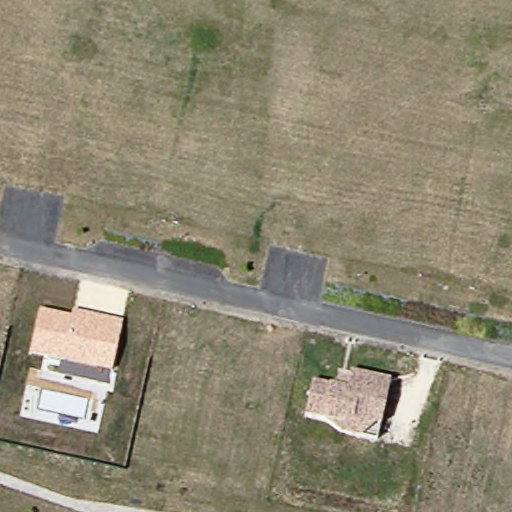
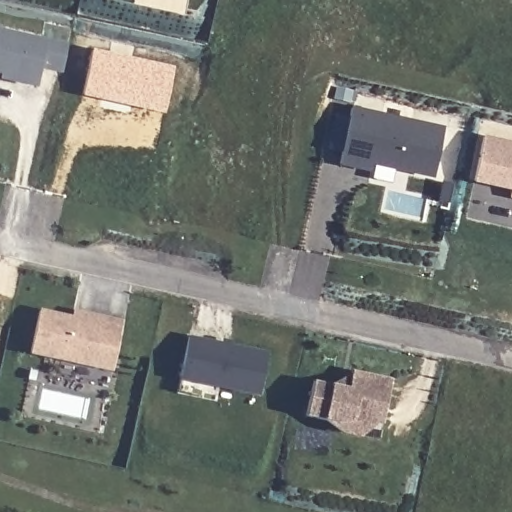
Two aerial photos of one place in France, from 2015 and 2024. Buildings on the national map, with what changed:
new [(68,47),(63,74),(42,70),(38,88),(3,81),(3,75),(0,75),(0,32),(68,47)]
new [(163,112),(83,95),(95,46),(176,65),(163,112)]
new [(373,170),(361,167),(342,163),(354,107),(393,115),(413,120),(448,127),(437,176),(362,160),(374,163),(373,170)]
unchanged [(110,372),(30,355),(39,310),(73,317),(73,310),(123,321),(110,372)]
new [(225,341),(226,336),(236,338),(235,344),(271,352),(263,393),(184,376),(193,335),(225,341)]
unchanged [(348,386),(351,368),(390,377),(377,436),(341,428),(327,418),(306,413),(313,378),(348,386)]

